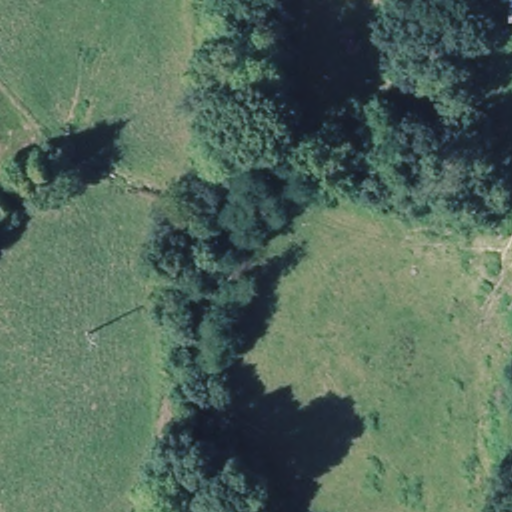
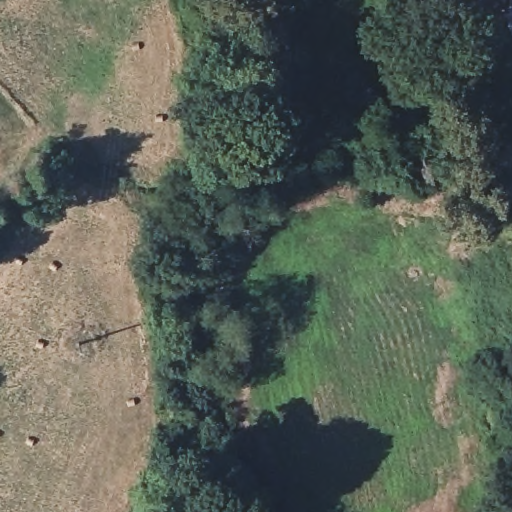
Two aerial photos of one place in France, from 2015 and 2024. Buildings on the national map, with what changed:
unchanged [(240,4),(240,0),(262,0),(262,5),(255,6),(240,4)]
unchanged [(507,19),(509,0),(512,0),(512,19),(507,19)]

